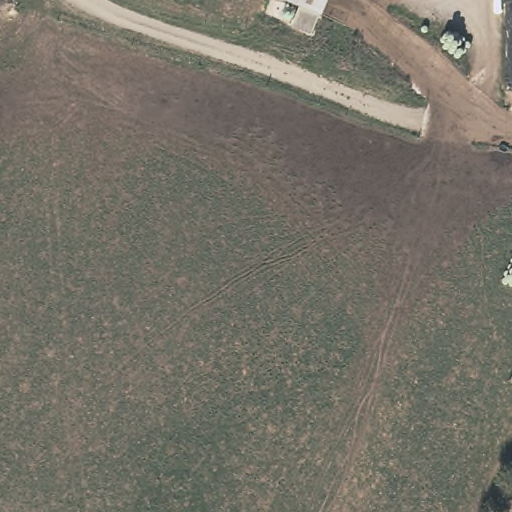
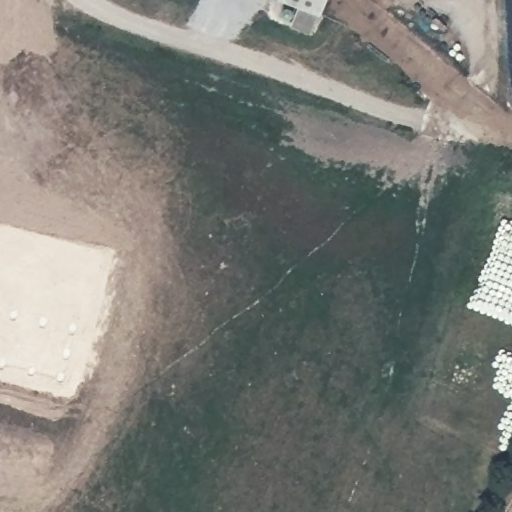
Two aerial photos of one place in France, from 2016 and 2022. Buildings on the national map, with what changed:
unchanged [(315,30),(284,19),(291,0),(326,0),(315,30)]

